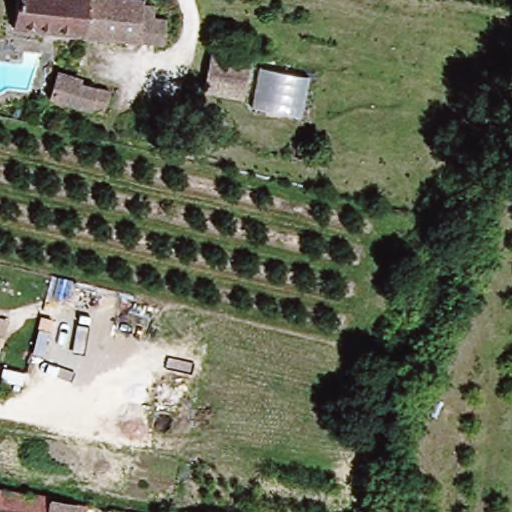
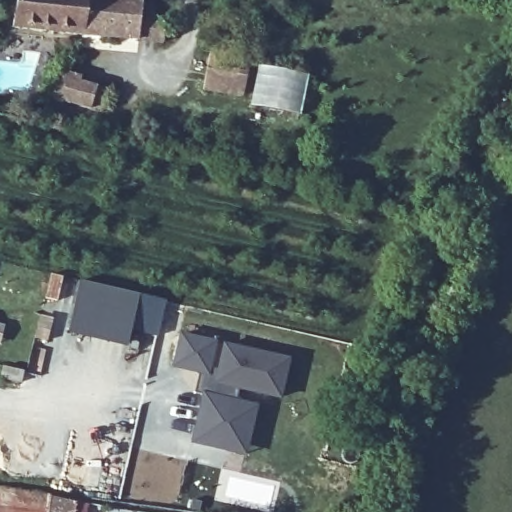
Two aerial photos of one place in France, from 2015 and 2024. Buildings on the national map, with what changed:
unchanged [(12,31),(16,0),(142,0),(141,20),(167,23),(165,49),(12,31)]
unchanged [(216,51),(255,58),(246,100),(207,91),(216,51)]
unchanged [(310,74),(303,115),(252,106),(260,65),(310,74)]
unchanged [(57,76),(106,88),(97,113),(51,100),(57,76)]
new [(127,342),(66,329),(77,279),(137,293),(127,342)]
new [(156,335),(130,329),(137,293),(163,299),(156,335)]
unchanged [(0,340),(0,315),(7,316),(2,340),(0,340)]
new [(205,369),(172,362),(179,330),(212,338),(205,369)]
new [(229,431),(215,427),(211,442),(190,438),(202,390),(211,392),(222,341),(286,355),(277,393),(237,384),(234,398),(236,399),(229,431)]
new [(211,392),(192,388),(197,367),(205,369),(207,363),(217,366),(211,392)]
new [(242,450),(211,442),(215,427),(229,431),(236,399),(254,403),(242,450)]
unchanged [(45,494),(45,501),(82,505),(81,512),(0,512),(0,486),(45,494)]
new [(148,512),(105,512),(106,507),(148,512)]

